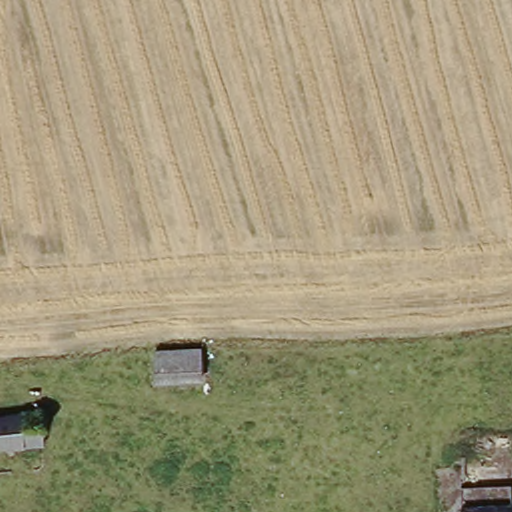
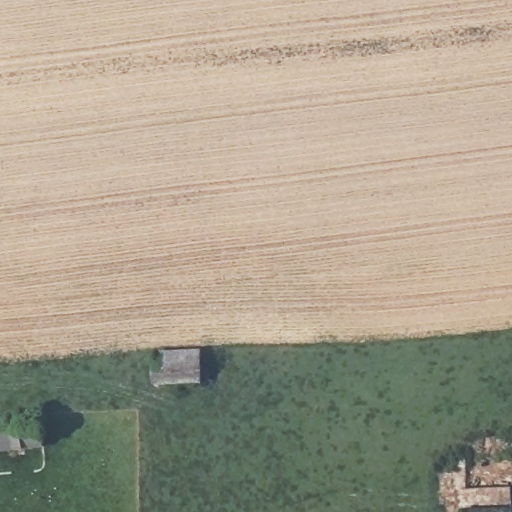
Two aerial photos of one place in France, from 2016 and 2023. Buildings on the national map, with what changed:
unchanged [(169,357),(168,340),(196,339),(199,385),(156,388),(154,359),(169,357)]
unchanged [(0,446),(0,414),(21,412),(23,444),(0,446)]
unchanged [(512,503),(512,512),(465,512),(464,505),(512,503)]

